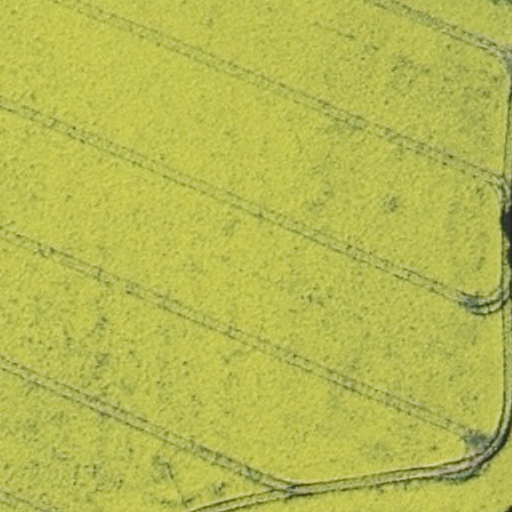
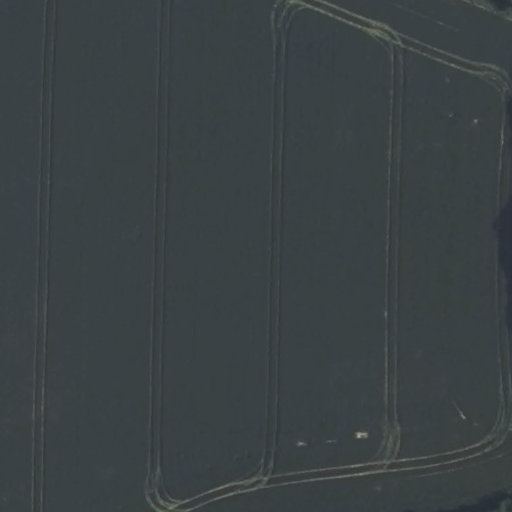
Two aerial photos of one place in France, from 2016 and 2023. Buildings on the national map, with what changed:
[]

